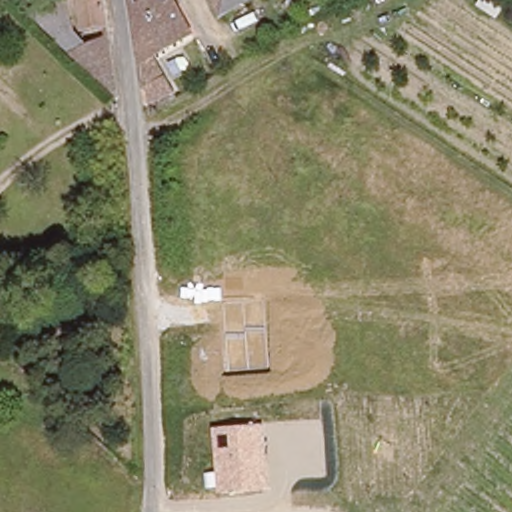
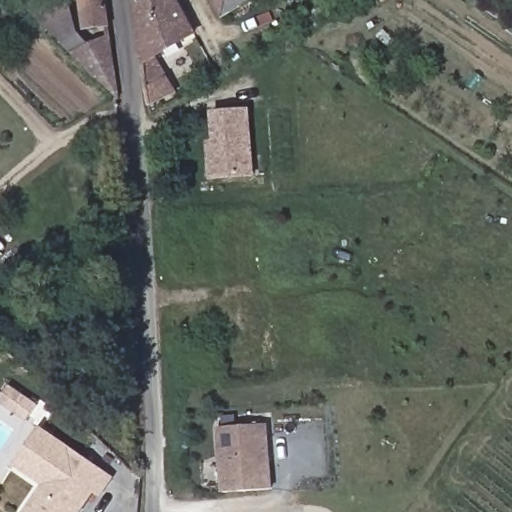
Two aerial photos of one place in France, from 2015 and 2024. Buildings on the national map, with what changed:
unchanged [(83,0),(106,0),(107,11),(85,13),(83,0)]
unchanged [(132,0),(172,0),(194,36),(138,69),(132,0)]
unchanged [(214,0),(253,0),(224,16),(214,0)]
unchanged [(64,29),(77,21),(85,34),(108,21),(114,91),(73,49),(71,46),(64,29)]
new [(176,91),(146,108),(138,69),(158,58),(176,91)]
new [(212,141),(210,111),(250,108),(255,177),(209,181),(205,141),(212,141)]
unchanged [(271,489),(222,494),(216,429),(267,424),(271,489)]
new [(94,493),(81,512),(23,512),(41,486),(13,465),(40,426),(113,478),(100,498),(94,493)]

